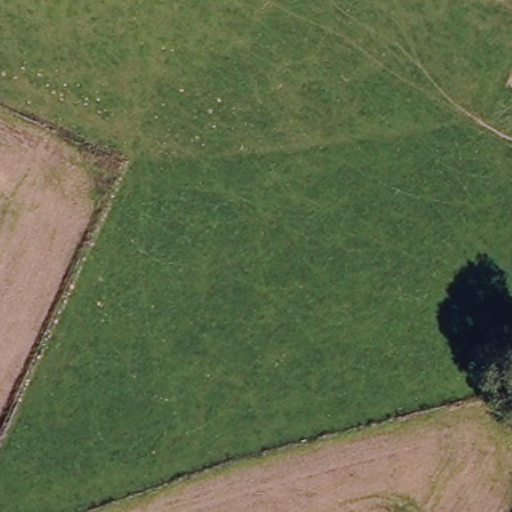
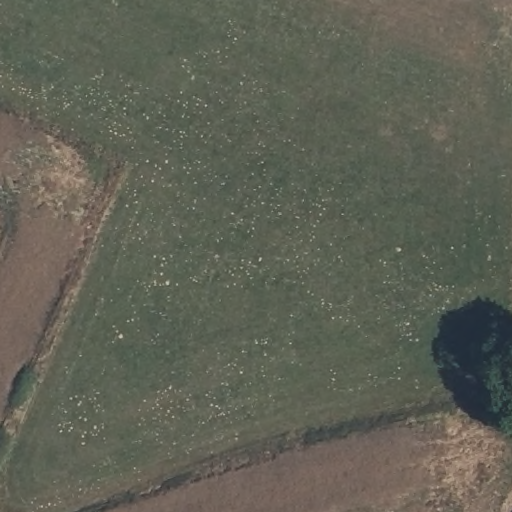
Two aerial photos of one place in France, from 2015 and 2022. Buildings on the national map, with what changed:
[]

